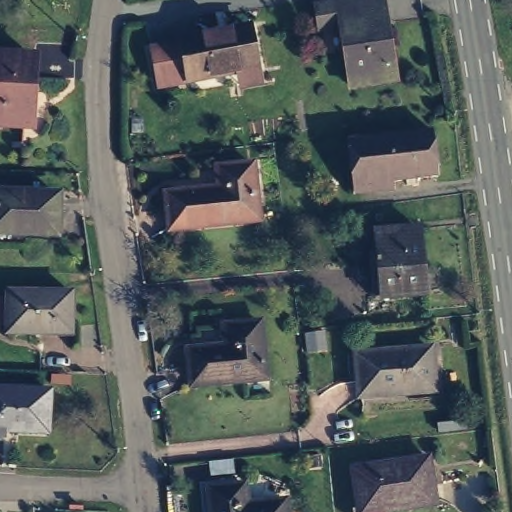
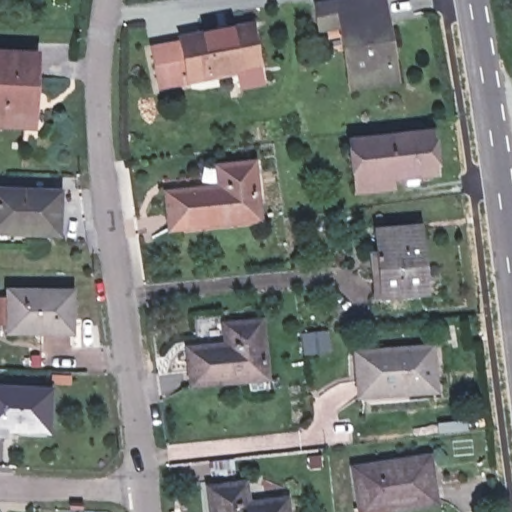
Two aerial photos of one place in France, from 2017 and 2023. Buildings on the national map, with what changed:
unchanged [(352,87),(342,25),(322,27),(319,7),(364,0),(380,0),(382,17),(384,17),(394,81),(352,87)]
unchanged [(164,82),(158,51),(188,46),(187,41),(255,29),(262,67),(265,82),(247,86),(243,71),(211,77),(210,74),(191,77),(192,85),(165,90),(164,82)]
unchanged [(0,51),(45,53),(43,102),(42,122),(35,121),(13,120),(12,127),(0,126),(0,51)]
unchanged [(408,186),(407,180),(355,186),(350,141),(433,132),(438,177),(418,179),(418,185),(408,186)]
unchanged [(172,200),(226,195),(224,174),(258,171),(263,226),(177,234),(172,200)]
unchanged [(8,231),(0,231),(0,191),(11,192),(11,196),(55,197),(54,237),(7,235),(8,231)]
unchanged [(370,269),(376,268),(373,239),(415,235),(420,299),(373,303),(370,269)]
unchanged [(0,338),(0,298),(62,298),(62,328),(62,339),(33,338),(0,338)]
unchanged [(195,356),(233,352),(232,332),(265,328),(271,383),(198,391),(195,356)]
unchanged [(405,392),(355,397),(353,362),(353,356),(393,352),(426,349),(428,384),(430,390),(405,392)]
unchanged [(14,415),(5,415),(5,436),(0,436),(0,390),(50,392),(48,433),(13,431),(14,415)]
unchanged [(355,505),(350,465),(423,454),(430,499),(380,507),(381,512),(350,512),(350,506),(355,505)]
unchanged [(230,491),(232,511),(270,506),(271,512),(197,512),(195,495),(230,491)]

